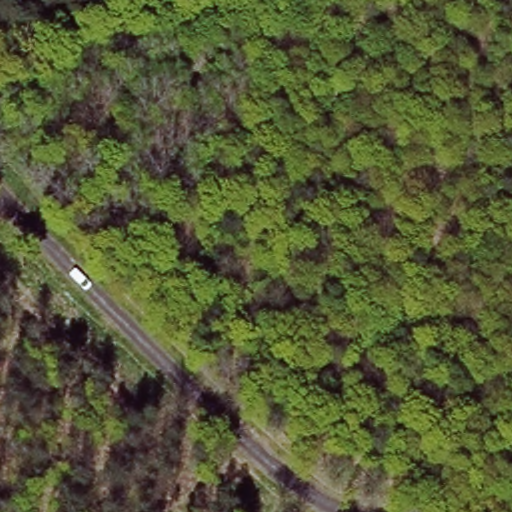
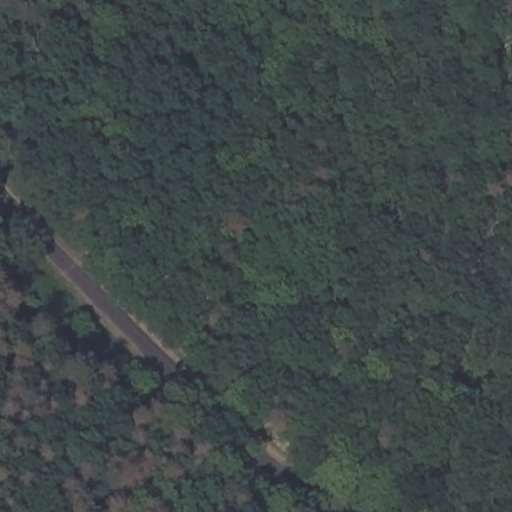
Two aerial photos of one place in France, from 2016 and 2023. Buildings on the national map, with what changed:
unchanged [(131,0),(148,0),(133,5),(131,0)]

